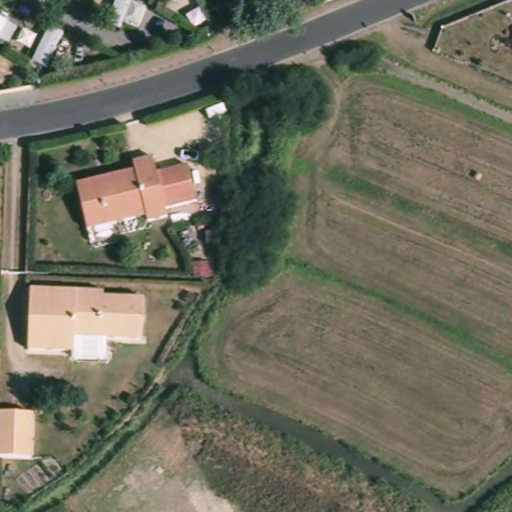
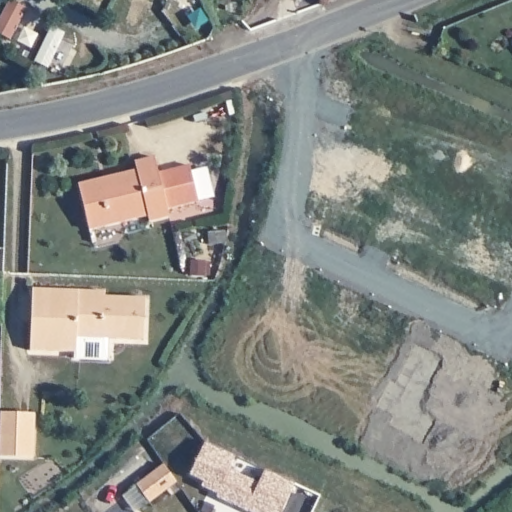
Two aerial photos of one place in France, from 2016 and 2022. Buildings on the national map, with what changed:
unchanged [(320,0),(351,0),(325,11),(320,0)]
unchanged [(157,159),(161,175),(192,167),(202,202),(171,211),(172,217),(154,222),(152,217),(93,232),(81,187),(104,182),(139,172),(137,164),(157,159)]
unchanged [(36,297),(109,300),(109,304),(149,306),(147,348),(79,346),(78,361),(33,358),(36,297)]
unchanged [(2,416),(37,417),(36,461),(1,461),(2,416)]
new [(204,440),(293,483),(280,512),(254,512),(214,494),(217,489),(188,475),(204,440)]
new [(162,465),(175,483),(148,502),(135,485),(162,465)]

